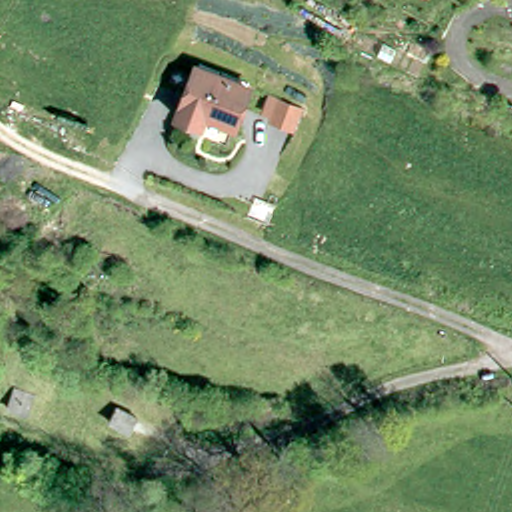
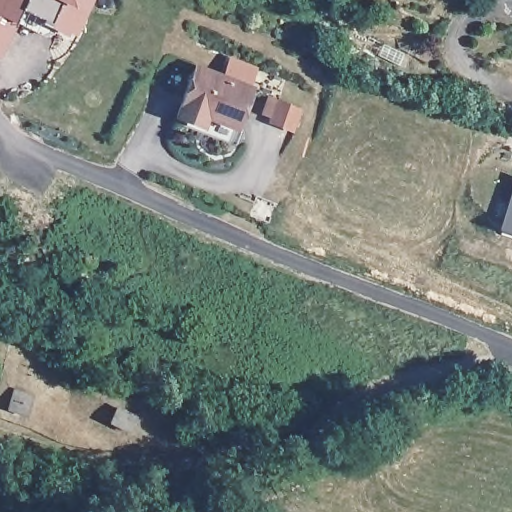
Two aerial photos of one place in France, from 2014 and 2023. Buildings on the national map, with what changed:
new [(89,10),(75,37),(68,33),(66,36),(55,30),(52,35),(44,36),(18,25),(0,57),(0,0),(69,0),(89,10)]
new [(90,11),(89,10),(69,0),(96,0),(90,11)]
unchanged [(195,106),(191,117),(169,108),(189,60),(243,83),(227,120),(195,106)]
unchanged [(295,135),(272,125),(274,120),(267,117),(273,102),(281,105),(303,116),(295,135)]
new [(496,230),(512,182),(512,236),(496,230)]
unchanged [(29,420),(10,413),(16,392),(36,398),(29,420)]
unchanged [(139,422),(132,436),(112,426),(119,411),(139,422)]

